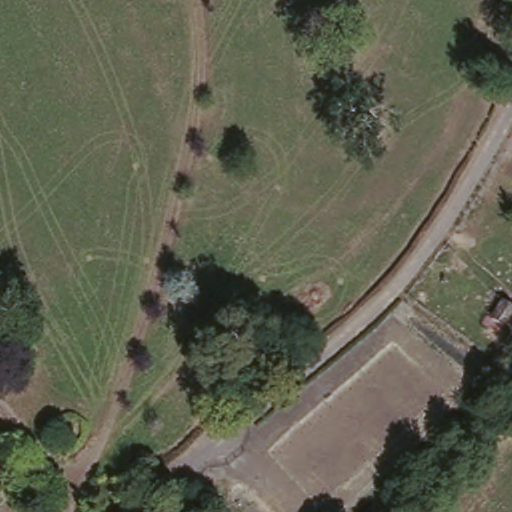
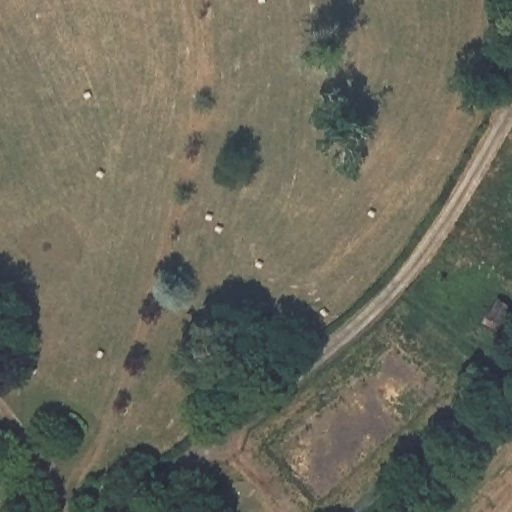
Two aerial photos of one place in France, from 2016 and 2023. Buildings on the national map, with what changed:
unchanged [(502,301),(512,308),(512,314),(504,325),(491,316),(502,301)]

